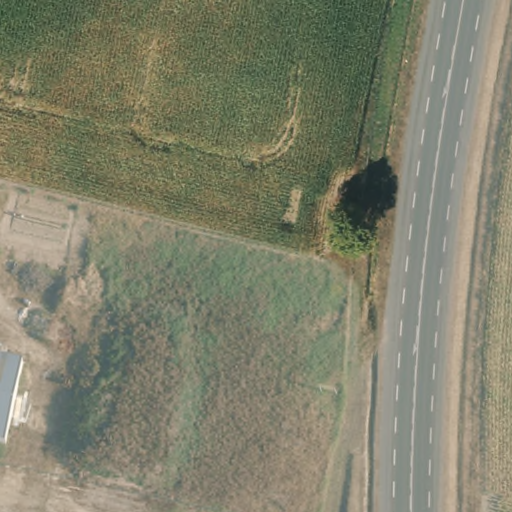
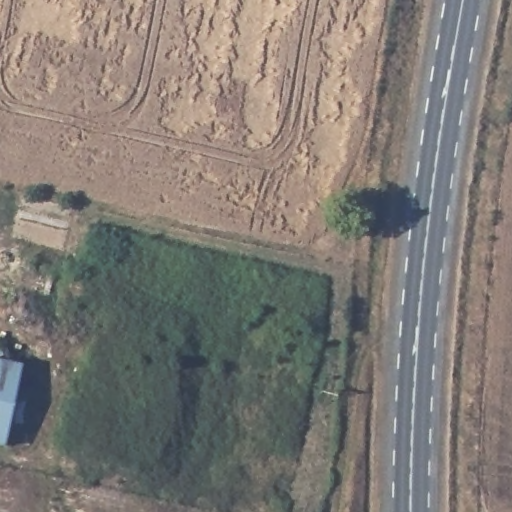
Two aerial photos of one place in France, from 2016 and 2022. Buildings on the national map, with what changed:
unchanged [(0,441),(0,356),(25,361),(7,442),(0,441)]

